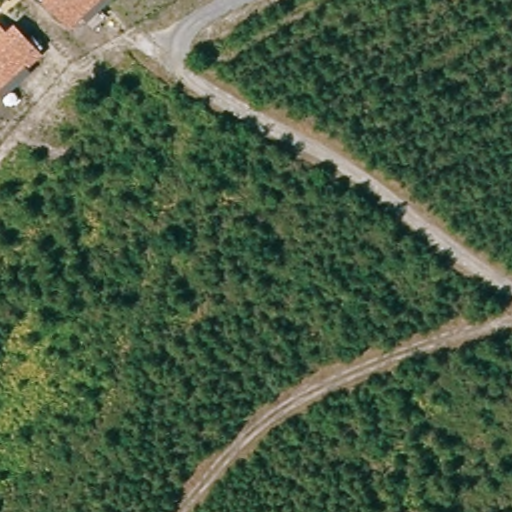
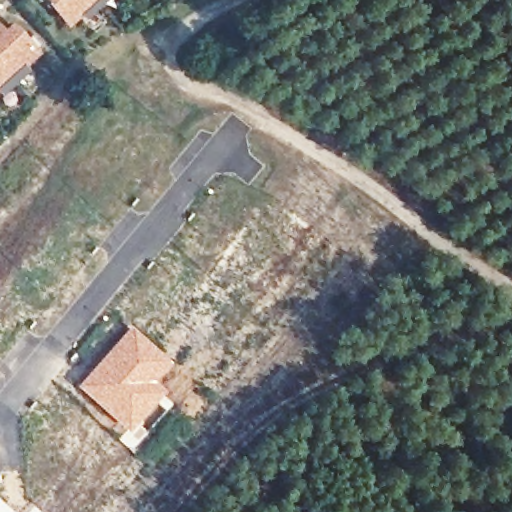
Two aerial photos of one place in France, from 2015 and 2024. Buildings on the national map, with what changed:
unchanged [(46,0),(98,0),(69,26),(46,0)]
unchanged [(12,22),(41,53),(0,90),(0,26),(4,30),(12,22)]
new [(130,325),(172,362),(154,381),(166,392),(142,421),(151,429),(131,451),(118,438),(125,430),(75,387),(130,325)]

